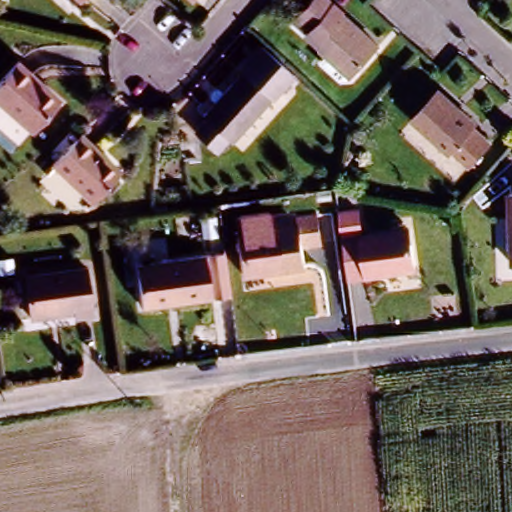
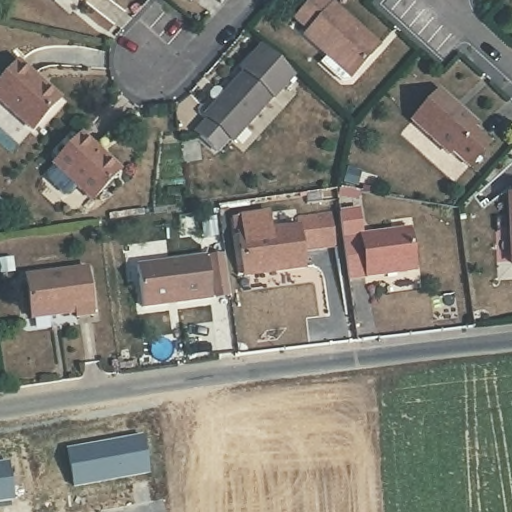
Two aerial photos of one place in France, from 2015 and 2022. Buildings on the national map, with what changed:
unchanged [(72,0),(81,0),(77,4),(72,0)]
unchanged [(347,75),(287,23),(307,0),(325,0),(375,44),(347,75)]
unchanged [(271,102),(242,78),(239,75),(261,50),(263,48),(295,75),(293,77),(271,102)]
unchanged [(29,139),(0,114),(0,83),(15,67),(59,106),(29,139)]
unchanged [(202,122),(242,78),(271,102),(230,147),(227,144),(215,157),(194,139),(206,126),(202,122)]
unchanged [(472,126),(445,158),(408,125),(436,94),(472,126)]
unchanged [(80,137),(119,172),(91,204),(51,168),(80,137)]
unchanged [(503,197),(512,197),(512,265),(507,265),(503,197)]
unchanged [(295,228),(301,269),(242,278),(236,237),(295,228)]
unchanged [(342,240),(406,230),(412,272),(348,282),(342,240)]
unchanged [(142,307),(136,265),(204,255),(210,297),(142,307)]
unchanged [(74,314),(30,320),(24,280),(87,270),(94,315),(75,319),(74,314)]
new [(142,436),(149,473),(74,487),(67,450),(142,436)]
new [(14,499),(0,501),(0,464),(8,463),(14,499)]

